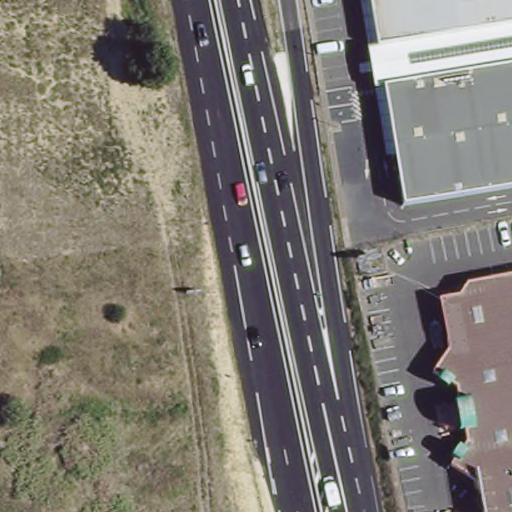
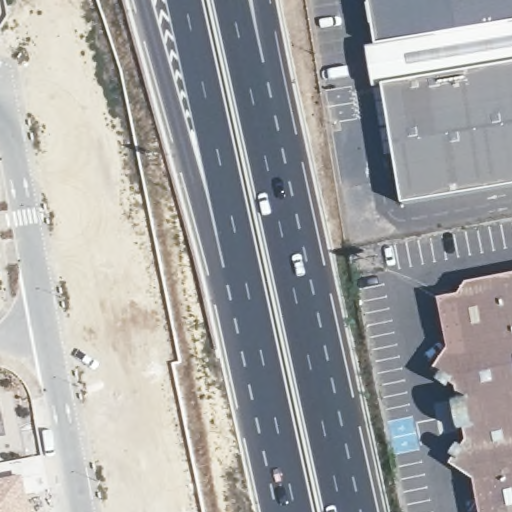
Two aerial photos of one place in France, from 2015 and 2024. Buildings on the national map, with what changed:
unchanged [(399,204),(378,87),(371,89),(364,49),(371,47),(363,0),(512,0),(512,184),(399,204)]
unchanged [(455,401),(459,400),(456,387),(452,385),(450,388),(439,381),(441,377),(436,373),(448,350),(439,302),(459,298),(468,285),(512,275),(512,512),(483,512),(476,480),(454,465),(458,458),(454,455),(460,445),(465,448),(468,442),(465,429),(461,430),(443,434),(437,405),(455,401)]
new [(28,512),(0,512),(0,478),(21,474),(28,512)]

